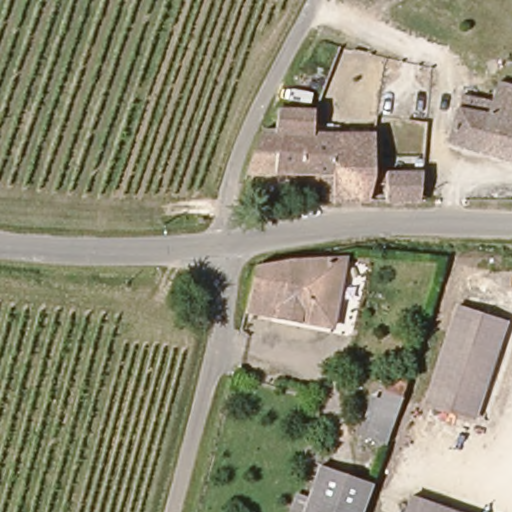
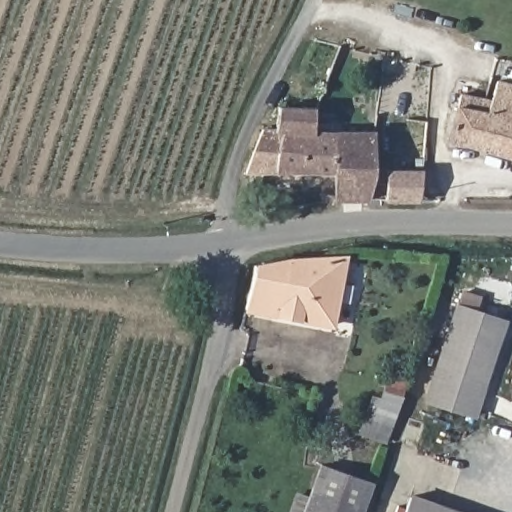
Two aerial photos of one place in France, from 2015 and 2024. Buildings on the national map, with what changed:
unchanged [(445,144),(460,92),(493,100),(498,81),(512,84),(512,163),(445,144)]
unchanged [(317,137),(336,137),(338,203),(322,205),(321,177),(247,175),(264,132),(280,134),(279,108),(315,108),(317,137)]
unchanged [(375,177),(374,201),(338,203),(336,137),(364,137),(376,138),(375,177)]
unchanged [(422,177),(422,197),(422,202),(389,201),(389,177),(422,177)]
unchanged [(257,265),(282,261),(315,258),(316,256),(343,259),(333,323),(247,310),(257,265)]
unchanged [(481,314),(506,322),(473,418),(425,402),(449,332),(458,306),(481,314)]
unchanged [(388,430),(367,423),(385,376),(407,382),(388,430)]
unchanged [(310,512),(326,468),(375,485),(365,512),(310,512)]
unchanged [(408,512),(413,497),(458,512),(408,512)]

